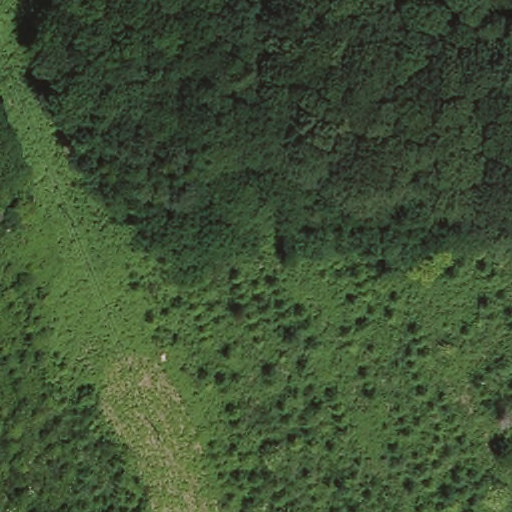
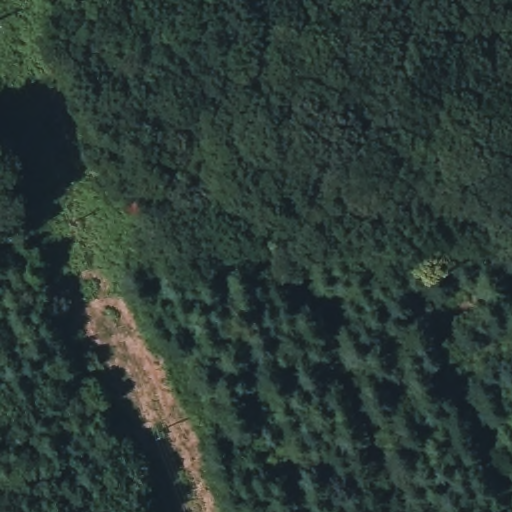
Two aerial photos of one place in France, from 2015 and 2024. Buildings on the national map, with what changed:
[]

